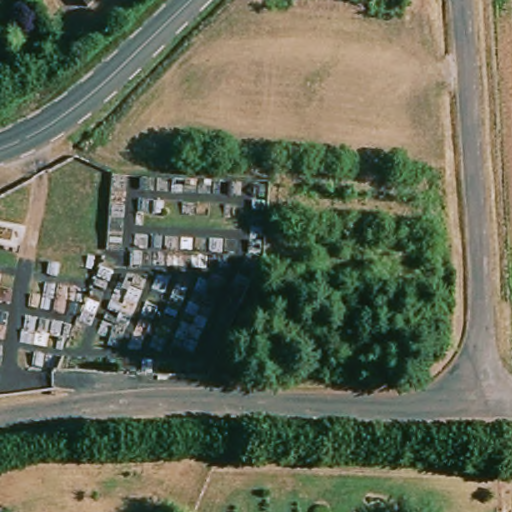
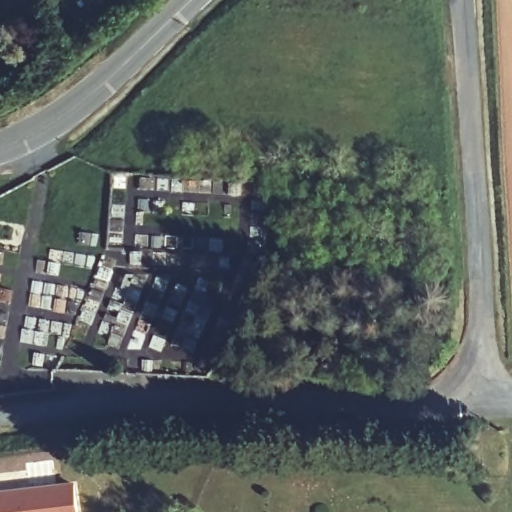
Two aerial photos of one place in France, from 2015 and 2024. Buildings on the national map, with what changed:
new [(81,512),(0,512),(0,490),(77,480),(81,512)]

